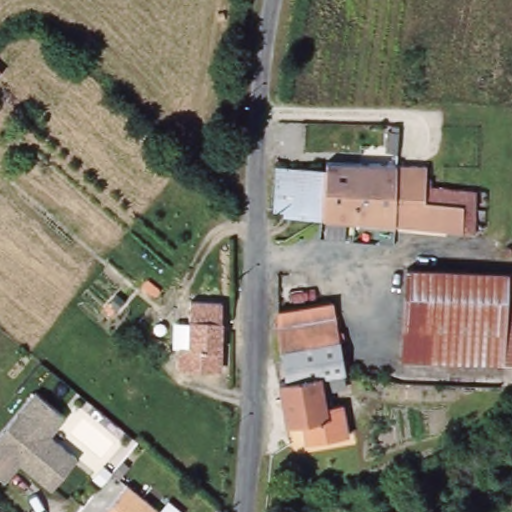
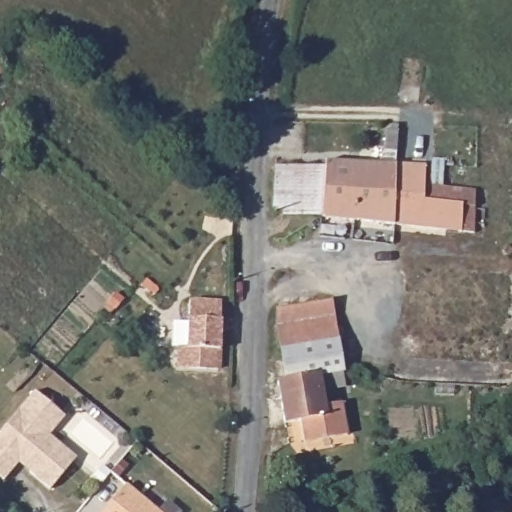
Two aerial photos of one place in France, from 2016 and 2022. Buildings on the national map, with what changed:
unchanged [(0,81),(0,70),(5,76),(0,81)]
unchanged [(367,221),(354,220),(322,216),(316,216),(301,214),(301,209),(275,206),(280,168),(320,172),(328,173),(329,166),(375,166),(401,166),(431,166),(429,177),(427,185),(435,186),(484,193),(478,235),(464,233),(440,229),(367,221)]
demolished [(404,358),(409,283),(410,269),(477,272),(512,274),(512,365),(404,358)]
unchanged [(331,391),(334,408),(351,406),(355,436),(308,443),(305,423),(289,426),(284,385),(294,383),(284,317),(284,303),(341,294),(351,366),(354,387),(331,391)]
unchanged [(184,349),(177,349),(176,321),(192,321),(192,300),(225,300),(226,370),(185,368),(184,349)]
unchanged [(0,477),(0,453),(46,400),(76,425),(60,444),(87,466),(60,497),(40,480),(29,471),(13,488),(0,477)]
unchanged [(132,482),(149,496),(149,495),(164,507),(163,508),(168,512),(106,512),(132,482)]

